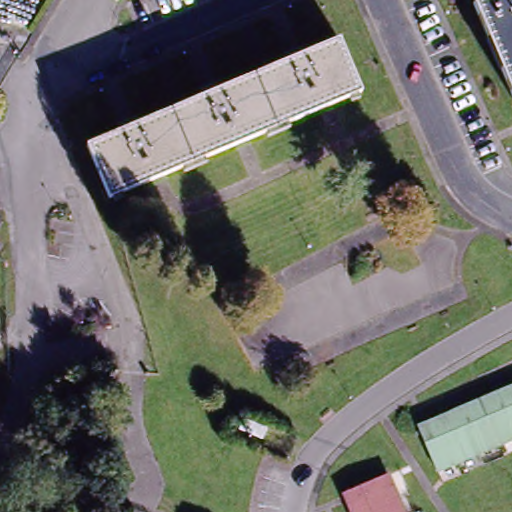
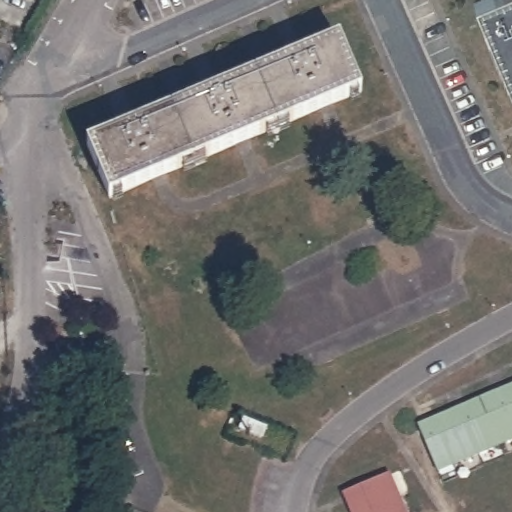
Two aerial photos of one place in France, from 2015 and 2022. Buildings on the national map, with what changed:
unchanged [(492,0),(512,0),(512,94),(475,7),(492,0)]
unchanged [(113,199),(91,147),(340,43),(362,93),(113,199)]
unchanged [(419,430),(512,388),(512,439),(437,472),(419,430)]
unchanged [(387,482),(400,512),(348,512),(344,501),(387,482)]

